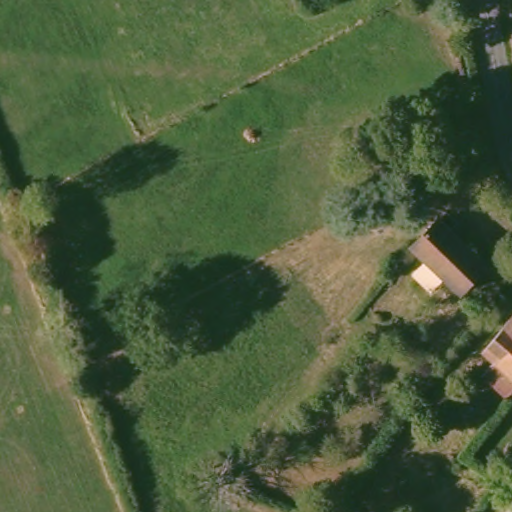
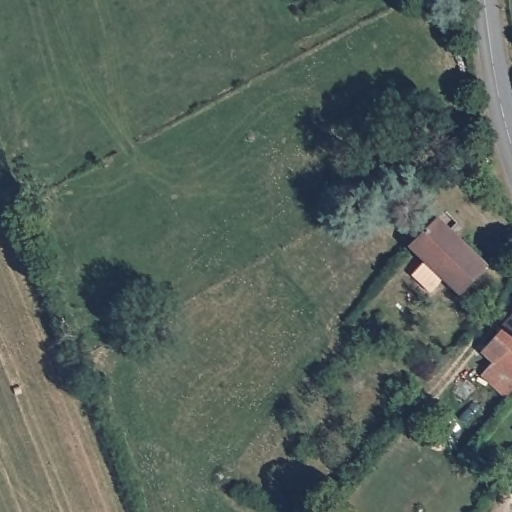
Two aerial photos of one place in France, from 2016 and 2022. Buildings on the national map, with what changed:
unchanged [(389,193),(399,207),(378,221),(368,207),(389,193)]
unchanged [(440,218),(487,264),(460,291),(444,275),(430,290),(412,272),(426,258),(412,244),(440,218)]
unchanged [(472,361),(512,311),(512,395),(510,397),(472,361)]

